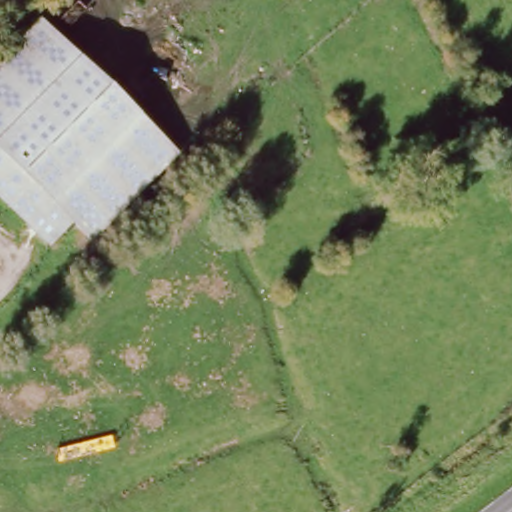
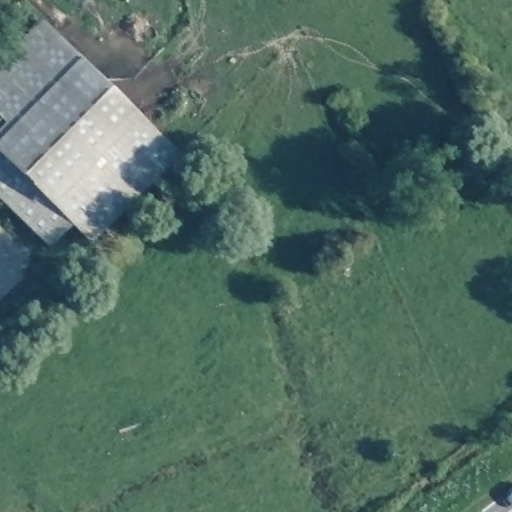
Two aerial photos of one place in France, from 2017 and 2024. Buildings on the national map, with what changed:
unchanged [(176,155),(90,244),(70,225),(47,246),(0,200),(0,60),(40,21),(176,155)]

